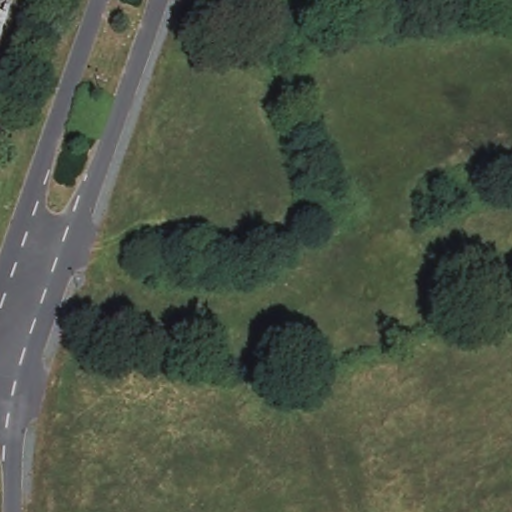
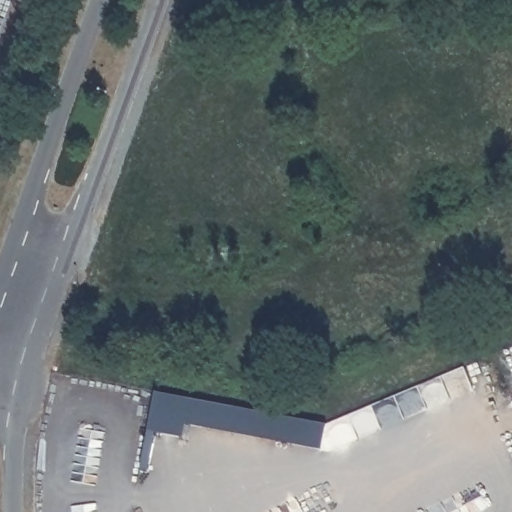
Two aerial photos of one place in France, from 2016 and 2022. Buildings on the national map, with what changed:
new [(152,391),(190,398),(185,424),(182,438),(145,431),(152,391)]
new [(190,398),(325,424),(320,449),(185,424),(190,398)]

